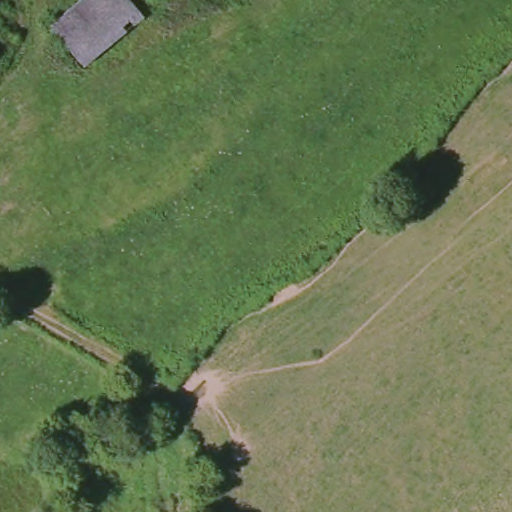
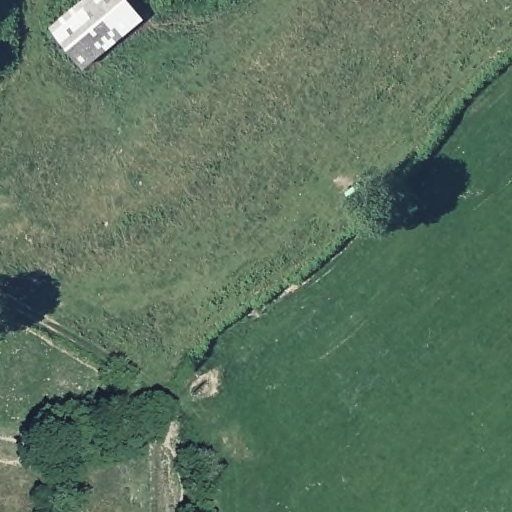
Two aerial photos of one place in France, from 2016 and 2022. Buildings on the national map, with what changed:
unchanged [(86,69),(55,27),(85,0),(131,0),(147,18),(86,69)]

